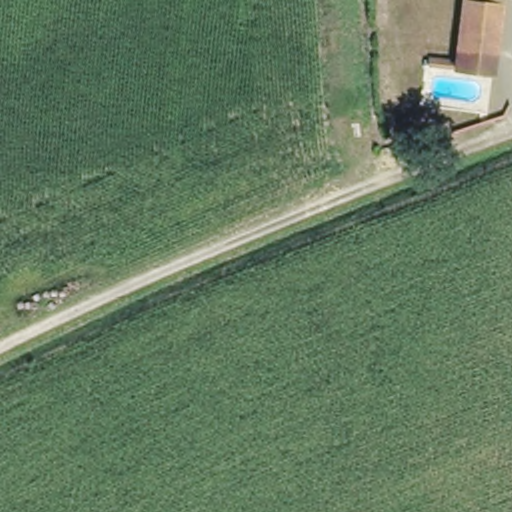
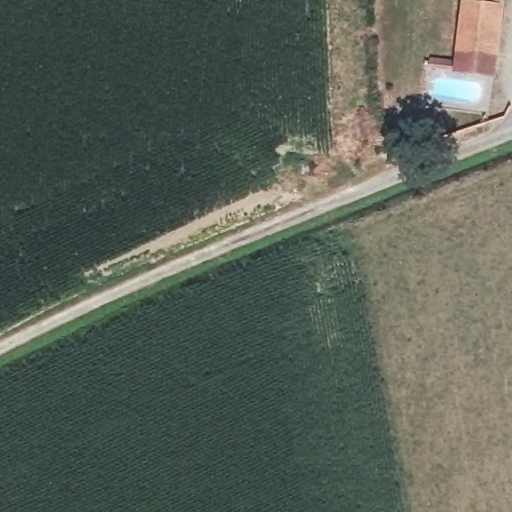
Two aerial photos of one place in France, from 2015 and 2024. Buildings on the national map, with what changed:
unchanged [(458,73),(460,52),(467,0),(502,0),(491,76),(458,73)]

